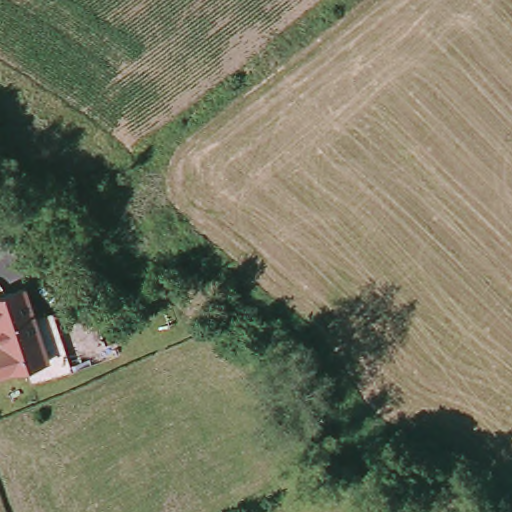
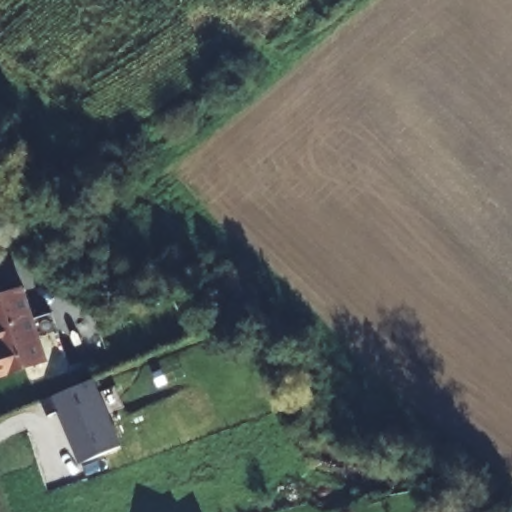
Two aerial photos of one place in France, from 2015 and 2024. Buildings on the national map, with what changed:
unchanged [(0,391),(0,361),(2,361),(0,352),(0,310),(23,302),(48,374),(0,391)]
new [(57,396),(94,381),(122,447),(85,462),(57,396)]

